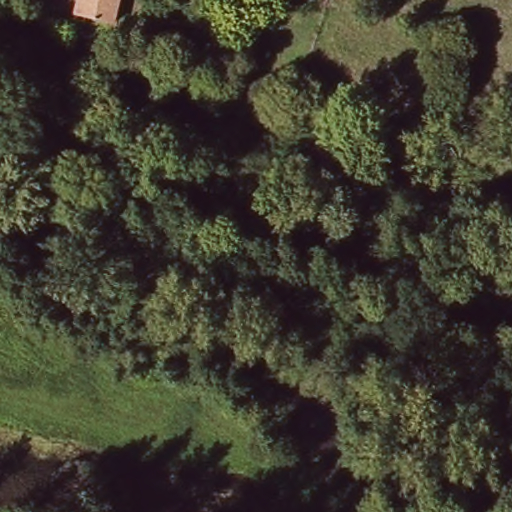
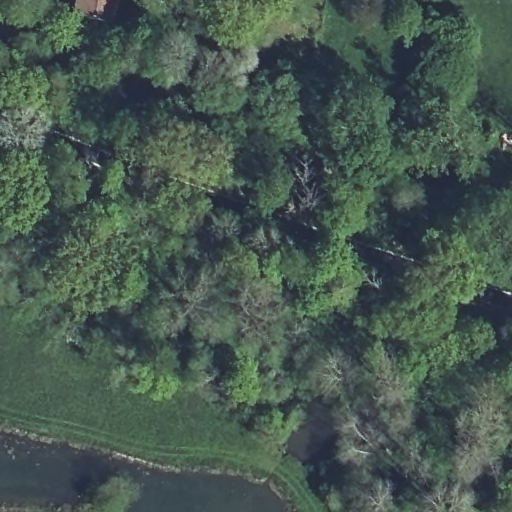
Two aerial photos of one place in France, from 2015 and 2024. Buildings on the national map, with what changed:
unchanged [(114,22),(80,16),(83,0),(119,0),(114,22)]

